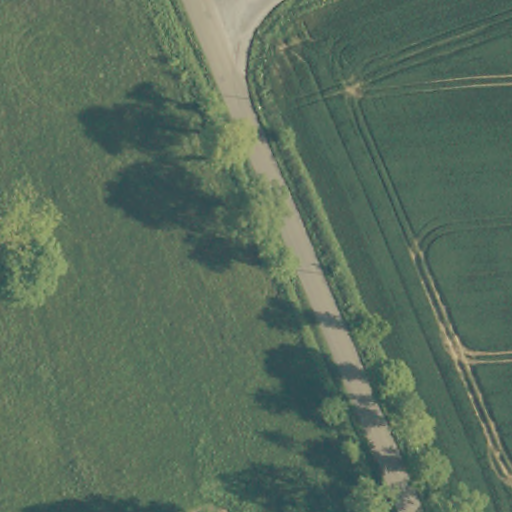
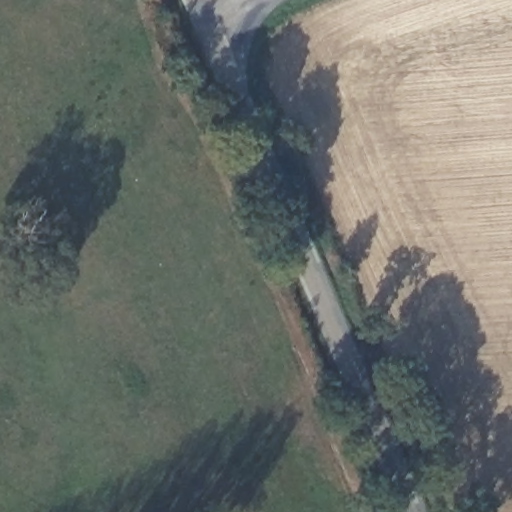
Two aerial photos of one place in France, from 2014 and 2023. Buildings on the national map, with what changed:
[]

